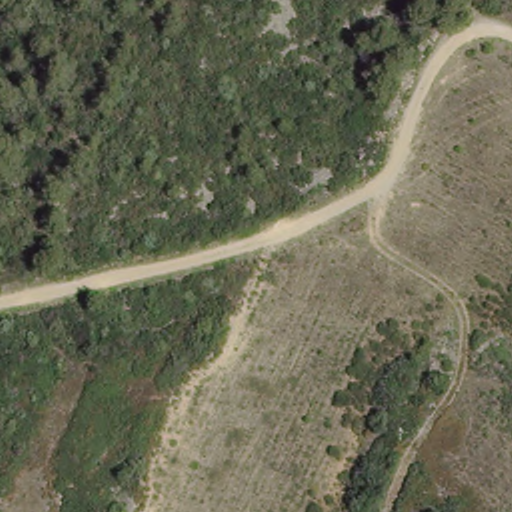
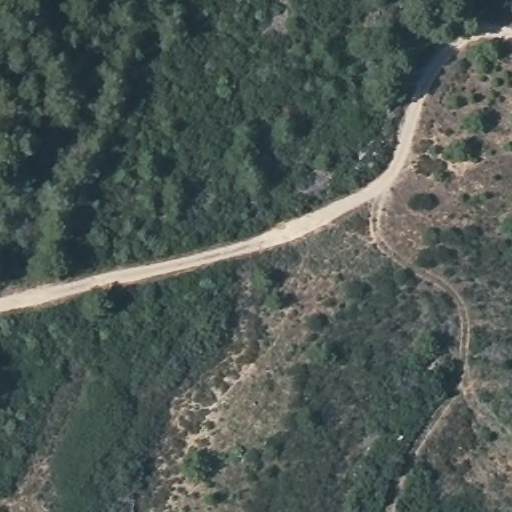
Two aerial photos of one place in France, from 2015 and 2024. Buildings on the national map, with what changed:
unchanged [(434,0),(445,18),(418,35),(401,8),(413,0),(434,0)]

